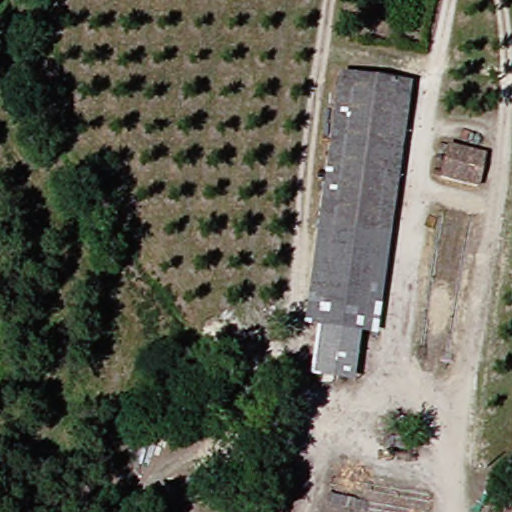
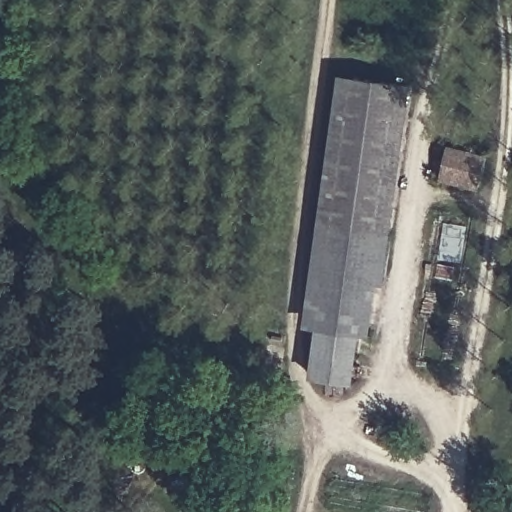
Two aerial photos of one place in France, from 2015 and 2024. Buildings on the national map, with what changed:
unchanged [(416,81),(385,330),(366,328),(358,379),(316,375),(322,324),(306,323),(343,71),(416,81)]
unchanged [(476,144),(468,178),(436,170),(441,138),(468,143),(476,144)]

